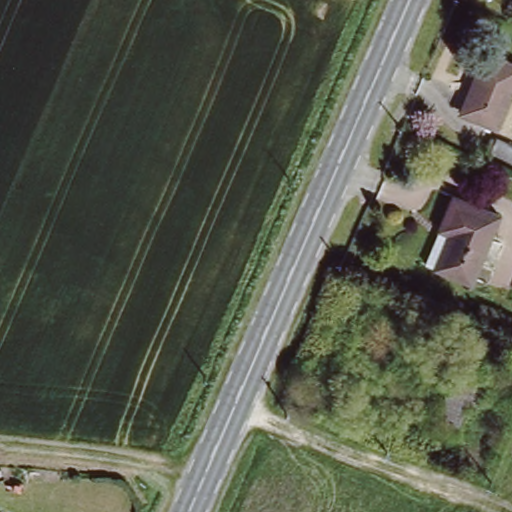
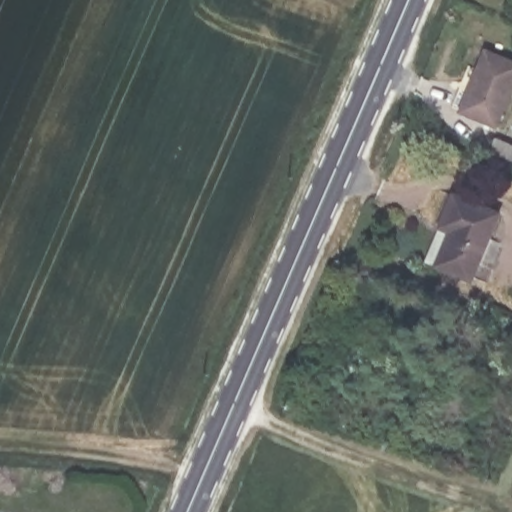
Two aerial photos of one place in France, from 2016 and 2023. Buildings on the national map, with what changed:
unchanged [(512,69),(512,86),(494,127),(461,112),(485,59),(512,69)]
unchanged [(512,139),(512,156),(490,146),(495,132),(512,139)]
unchanged [(452,196),(496,215),(469,281),(423,262),(452,196)]
unchanged [(455,371),(484,382),(475,403),(465,399),(452,430),(432,422),(455,371)]

